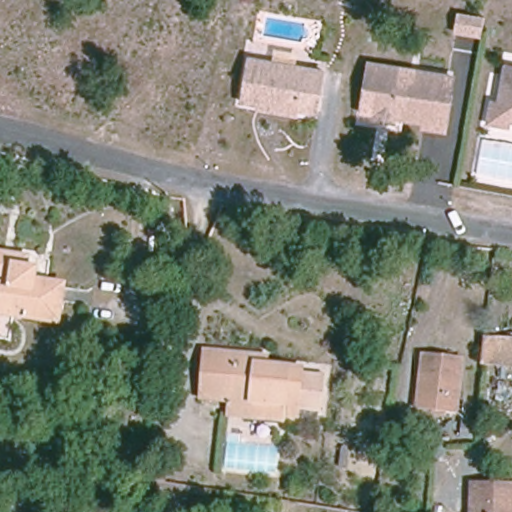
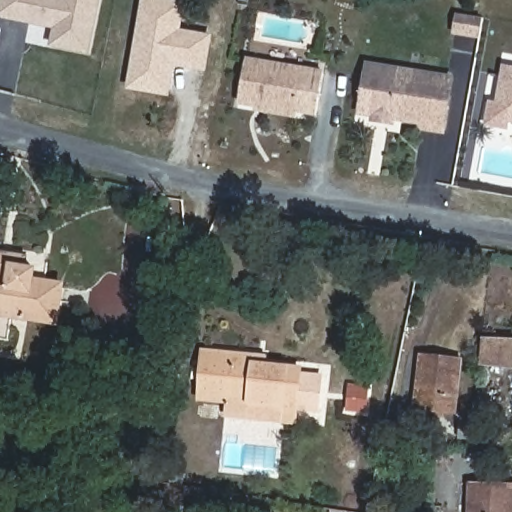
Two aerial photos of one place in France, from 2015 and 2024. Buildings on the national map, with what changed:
new [(4,0),(100,0),(90,51),(55,44),(59,27),(1,15),(4,0)]
new [(207,72),(176,67),(171,97),(128,89),(142,0),(179,0),(185,1),(182,29),(214,34),(207,72)]
unchanged [(461,32),(465,16),(490,20),(486,36),(461,32)]
unchanged [(240,65),(297,75),(316,79),(309,117),(290,113),(289,115),(233,105),(240,65)]
unchanged [(369,65),(451,80),(442,131),(422,127),(422,122),(360,111),(369,65)]
unchanged [(492,125),(495,106),(505,109),(512,71),(512,128),(492,125)]
unchanged [(26,267),(37,268),(36,280),(65,284),(59,322),(0,313),(0,253),(28,257),(26,267)]
unchanged [(512,347),(512,361),(492,361),(494,346),(512,347)]
unchanged [(456,414),(416,409),(423,353),(462,358),(456,414)]
unchanged [(207,355),(267,361),(266,369),(303,372),(303,377),(322,379),(318,415),(202,403),(207,355)]
unchanged [(512,485),(512,512),(471,512),(472,484),(512,485)]

